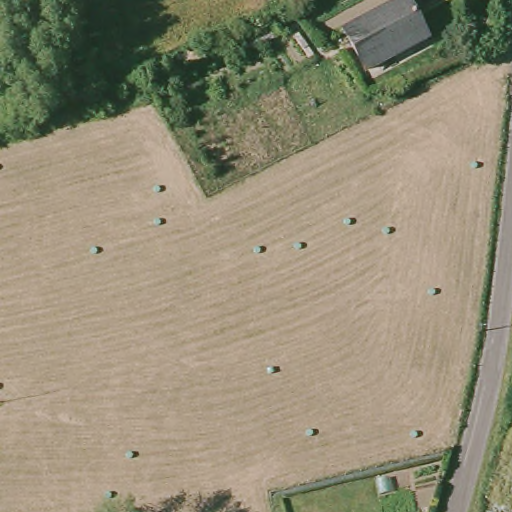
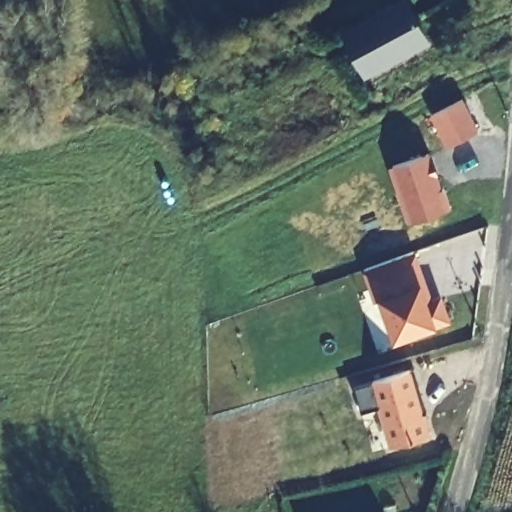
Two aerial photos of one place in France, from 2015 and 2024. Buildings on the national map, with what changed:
unchanged [(408,1),(425,41),(361,71),(343,32),(408,1)]
new [(479,128),(449,146),(432,117),(463,99),(479,128)]
new [(442,187),(447,185),(453,207),(409,222),(389,167),(431,152),(442,187)]
new [(442,296),(448,316),(435,321),(435,327),(393,342),(373,301),(362,271),(417,252),(433,299),(442,296)]
new [(423,412),(427,411),(432,432),(390,446),(378,406),(362,410),(355,386),(413,368),(423,412)]

